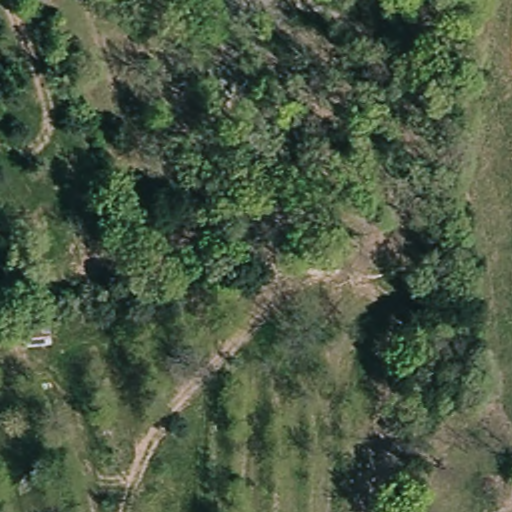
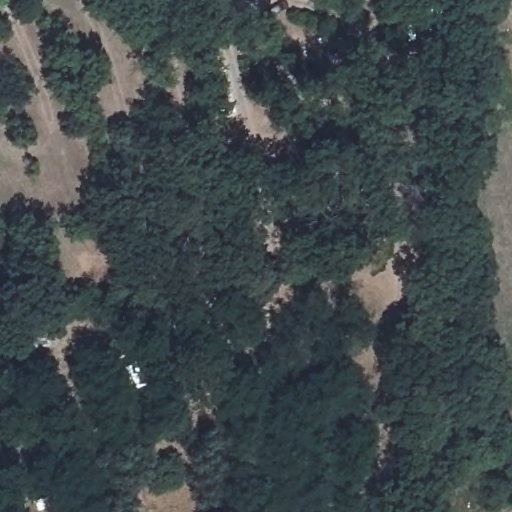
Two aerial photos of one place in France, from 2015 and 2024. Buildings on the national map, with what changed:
unchanged [(208,96),(205,83),(203,71),(219,69),(219,72),(223,93),(208,96)]
unchanged [(52,346),(23,345),(22,321),(52,323),(52,346)]

